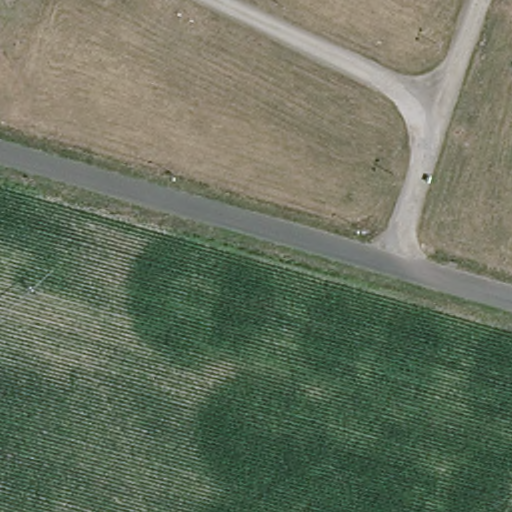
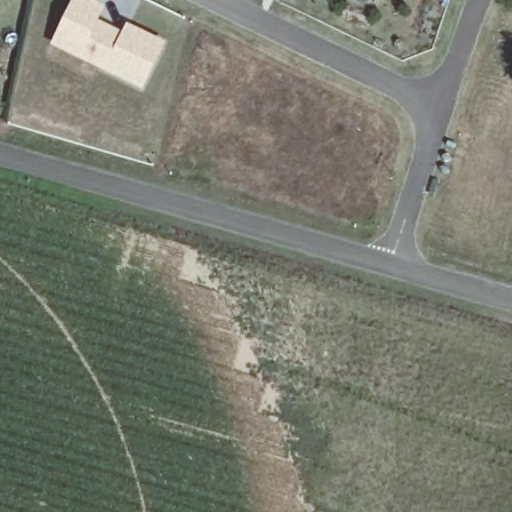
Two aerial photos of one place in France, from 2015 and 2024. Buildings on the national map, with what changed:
new [(103,11),(94,29),(125,43),(130,31),(165,48),(141,92),(55,49),(78,1),(103,11)]

